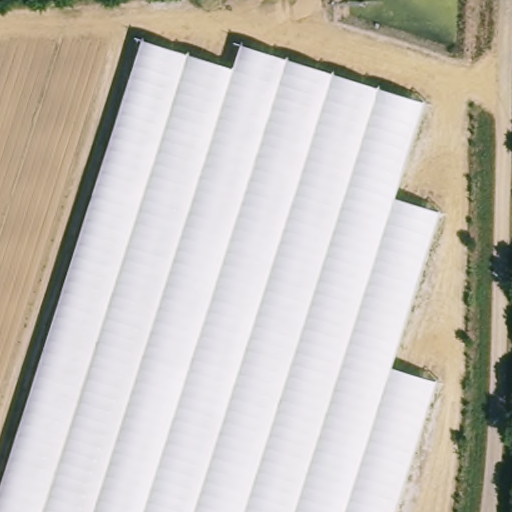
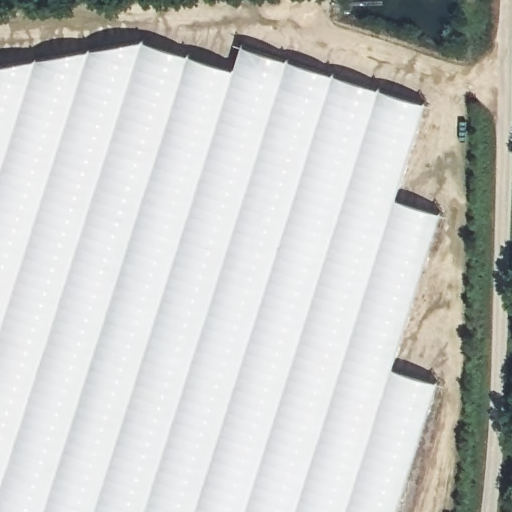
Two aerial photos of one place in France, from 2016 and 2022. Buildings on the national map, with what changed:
new [(0,66),(141,42),(0,488),(0,66)]
unchanged [(243,45),(425,103),(395,199),(439,213),(392,367),(437,381),(397,512),(0,512),(0,488),(141,42),(234,69),(243,45)]

